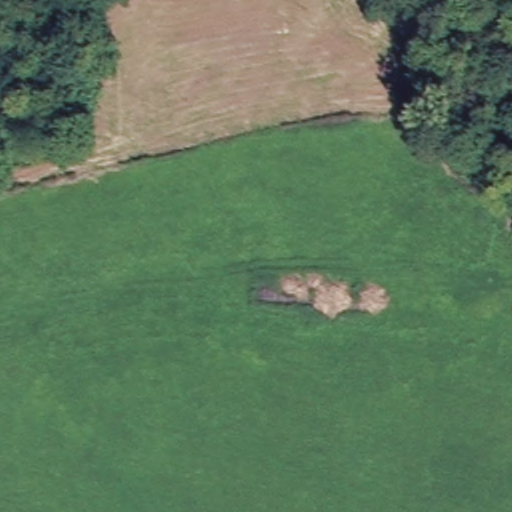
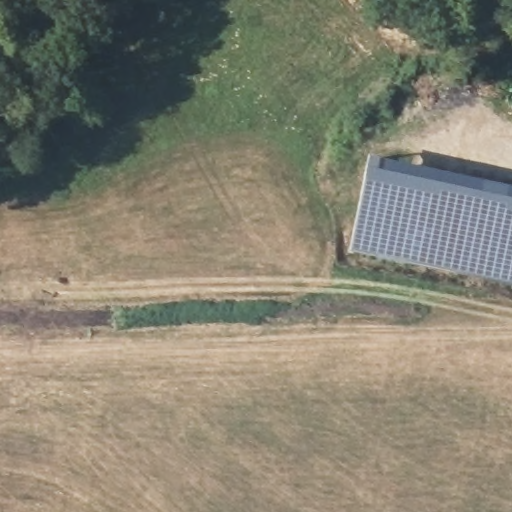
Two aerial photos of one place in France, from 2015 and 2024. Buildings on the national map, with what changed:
new [(373,152),(512,183),(512,295),(349,259),(373,152)]

